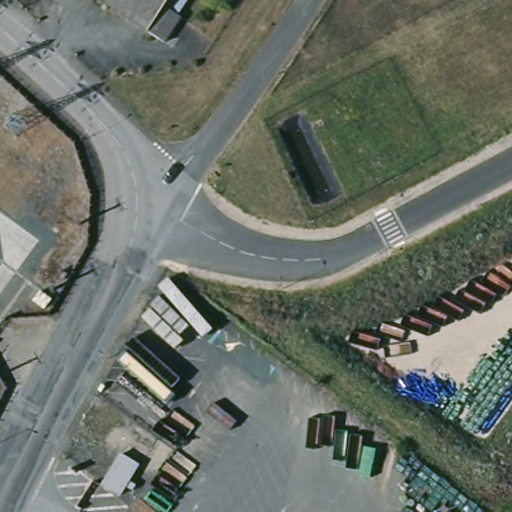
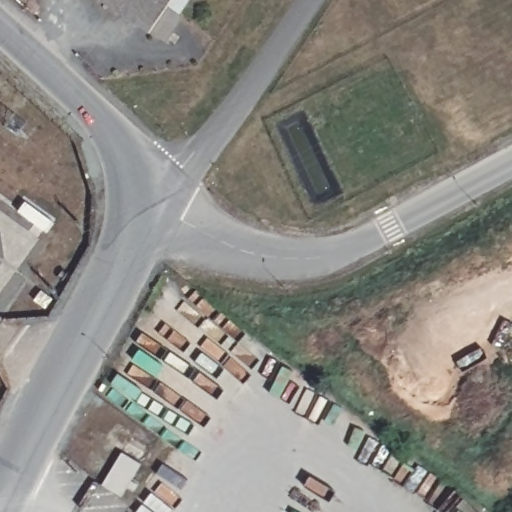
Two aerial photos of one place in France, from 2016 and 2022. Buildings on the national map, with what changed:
unchanged [(178,18),(161,43),(97,0),(166,0),(161,7),(178,18)]
unchanged [(119,493),(103,483),(127,438),(145,448),(119,493)]

